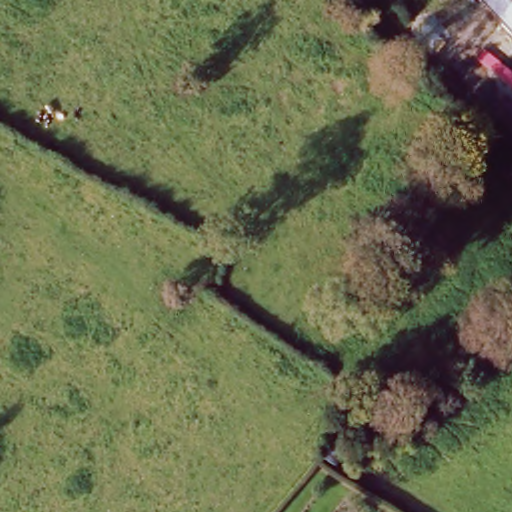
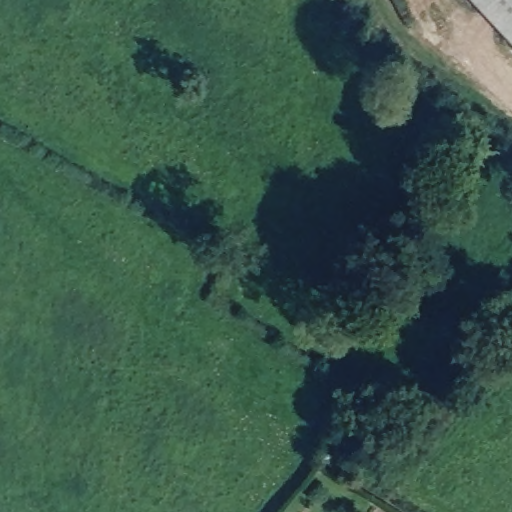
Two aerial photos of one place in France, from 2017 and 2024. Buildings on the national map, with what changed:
unchanged [(480,0),(512,0),(512,34),(480,0)]

